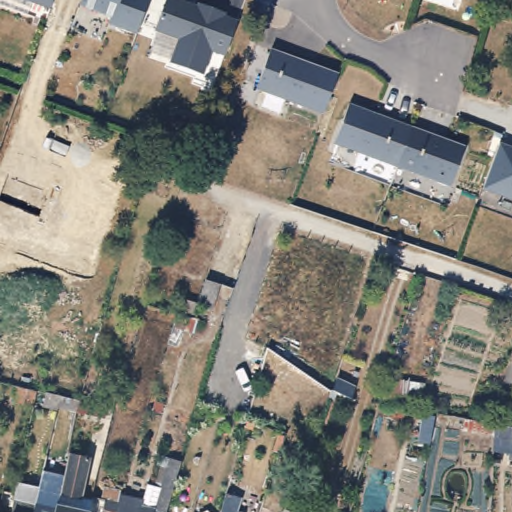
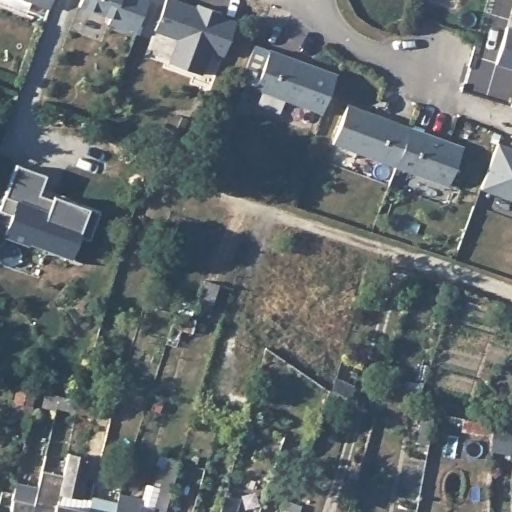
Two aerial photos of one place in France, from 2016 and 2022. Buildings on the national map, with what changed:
unchanged [(51,7),(32,1),(31,0),(54,0),(51,7)]
unchanged [(144,16),(137,33),(110,23),(112,16),(80,5),(82,0),(149,0),(144,16)]
unchanged [(207,11),(209,7),(225,13),(223,17),(237,22),(230,42),(225,55),(211,50),(202,74),(171,62),(180,38),(155,29),(166,0),(179,0),(207,11)]
new [(496,64),(506,28),(512,30),(512,68),(496,64)]
unchanged [(323,113),(256,88),(271,49),(337,73),(323,113)]
new [(510,103),(512,97),(512,104),(510,103)]
unchanged [(396,171),(333,147),(347,108),(410,132),(396,171)]
unchanged [(463,151),(448,190),(396,171),(410,132),(463,151)]
unchanged [(500,193),(499,195),(481,188),(498,143),(512,148),(512,197),(500,193)]
new [(53,178),(47,193),(60,198),(107,214),(96,243),(86,239),(77,263),(54,254),(58,244),(39,236),(35,246),(12,238),(19,218),(5,213),(22,166),(53,178)]
unchanged [(201,313),(199,319),(194,317),(189,316),(190,310),(182,307),(185,294),(197,298),(194,311),(195,311),(197,312),(201,313)]
unchanged [(239,326),(236,333),(230,330),(232,324),(239,326)]
unchanged [(273,351),(270,363),(262,360),(266,349),(273,351)]
unchanged [(35,384),(42,385),(40,390),(34,389),(32,398),(13,395),(17,378),(35,381),(35,384)]
unchanged [(490,450),(491,436),(430,428),(428,445),(417,445),(420,423),(411,423),(412,411),(378,407),(380,379),(419,383),(420,417),(434,420),(433,415),(491,422),(512,426),(512,453),(490,450)]
unchanged [(335,388),(332,394),(326,391),(329,383),(335,388)]
unchanged [(104,400),(100,411),(74,404),(77,392),(104,400)]
unchanged [(252,417),(250,424),(244,423),(246,415),(252,417)]
unchanged [(64,481),(69,451),(89,455),(80,496),(61,492),(61,494),(60,502),(58,501),(56,512),(0,512),(0,493),(15,497),(16,492),(19,483),(39,487),(35,501),(43,503),(46,490),(49,477),(64,481)]
unchanged [(496,458),(496,465),(489,465),(490,458),(496,458)]
unchanged [(141,503),(155,505),(157,497),(152,496),(155,486),(161,487),(167,471),(177,475),(164,512),(138,512),(140,508),(141,503)]
unchanged [(512,489),(512,505),(511,489),(512,489)]
unchanged [(240,493),(235,509),(241,511),(241,512),(219,512),(226,490),(240,493)]
unchanged [(117,503),(119,500),(122,501),(120,508),(116,507),(114,512),(103,512),(106,500),(117,503)]
unchanged [(87,502),(92,503),(91,512),(56,512),(58,501),(60,502),(86,508),(87,502)]
unchanged [(129,509),(130,508),(130,507),(131,506),(132,506),(140,508),(138,512),(128,512),(129,510),(129,509)]
unchanged [(297,512),(280,512),(282,507),(297,512)]

